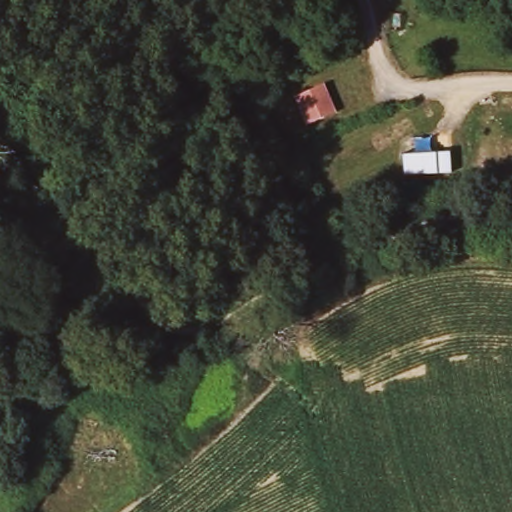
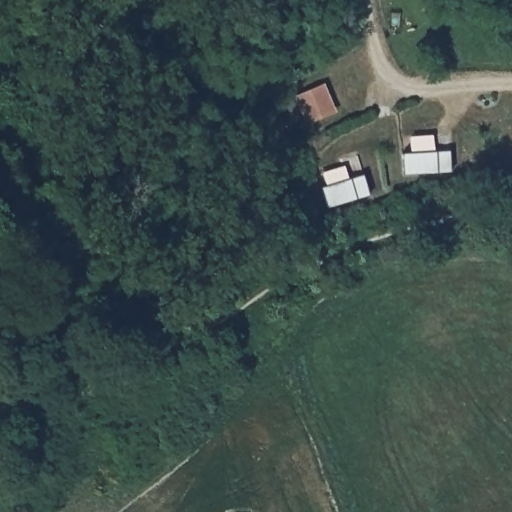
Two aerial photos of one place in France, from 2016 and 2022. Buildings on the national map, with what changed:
unchanged [(335,110),(301,125),(290,97),(323,82),(335,110)]
unchanged [(449,136),(454,164),(413,168),(408,140),(449,136)]

